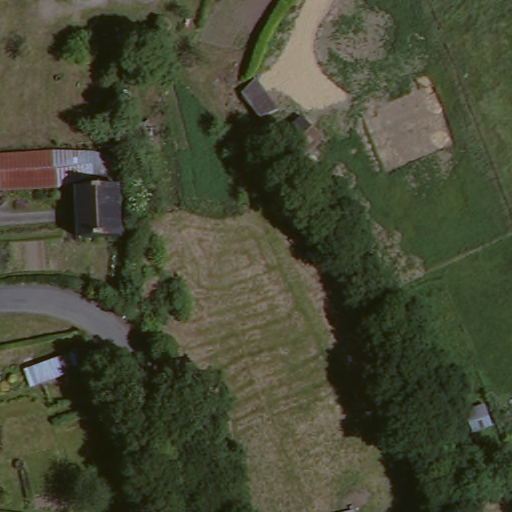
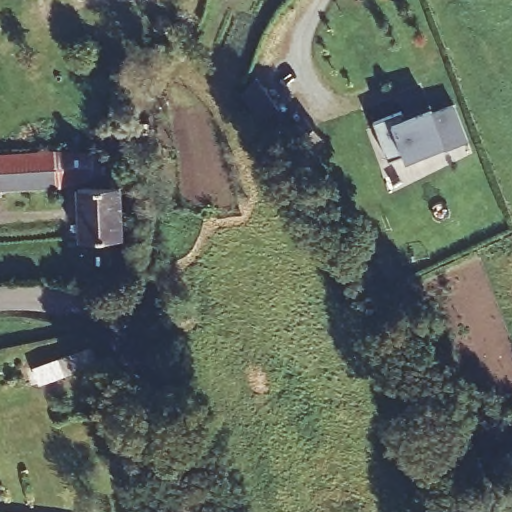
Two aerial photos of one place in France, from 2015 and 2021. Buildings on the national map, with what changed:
unchanged [(247,92),(261,78),(283,110),(266,118),(247,92)]
new [(409,114),(411,120),(438,110),(453,148),(414,163),(412,157),(396,163),(381,125),(409,114)]
unchanged [(323,139),(299,160),(279,137),(303,116),(323,139)]
unchanged [(83,152),(94,152),(121,161),(123,186),(120,186),(122,236),(81,238),(78,188),(94,187),(94,176),(59,187),(0,190),(0,155),(53,151),(83,152)]
unchanged [(1,195),(0,196),(0,191),(1,195)]
unchanged [(69,373),(33,387),(28,369),(61,355),(69,373)]

